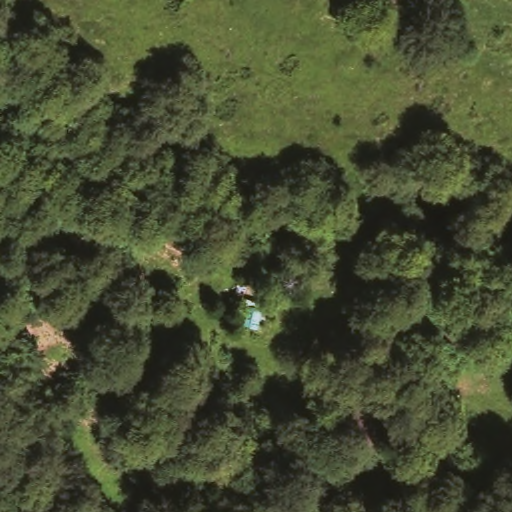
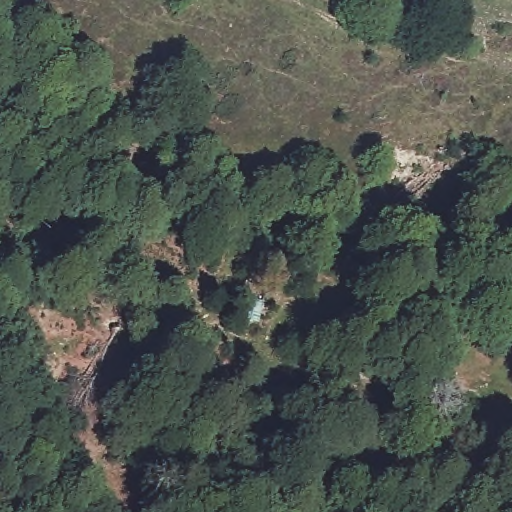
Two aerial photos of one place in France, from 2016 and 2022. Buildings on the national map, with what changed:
unchanged [(259,299),(254,328),(235,323),(242,295),(259,299)]

